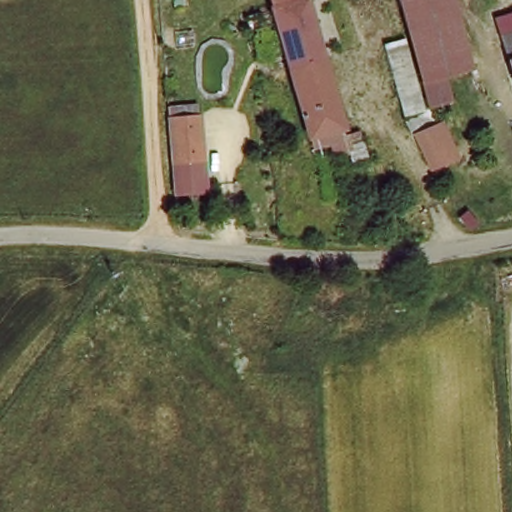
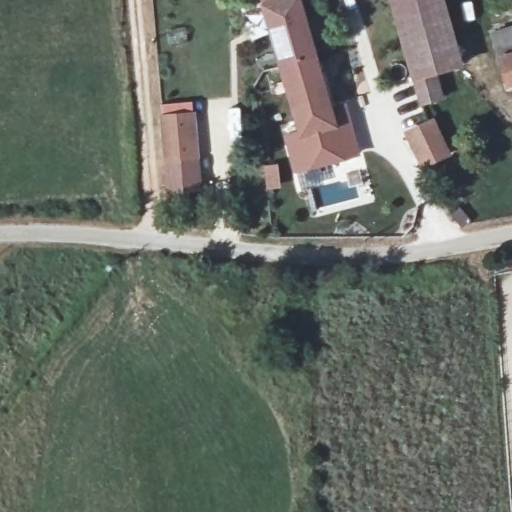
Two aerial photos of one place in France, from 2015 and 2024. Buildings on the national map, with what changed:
new [(261,0),(291,0),(264,9),(261,0)]
unchanged [(282,68),(264,9),(291,0),(298,0),(317,59),(282,68)]
unchanged [(453,71),(435,75),(440,100),(418,106),(394,0),(440,0),(453,71)]
unchanged [(492,37),(512,31),(512,89),(507,91),(492,37)]
unchanged [(337,128),(302,137),(282,68),(317,59),(337,128)]
new [(302,137),(337,128),(330,106),(345,103),(360,156),(292,174),(281,134),(292,131),(293,137),(302,134),(302,137)]
unchanged [(198,118),(203,161),(173,164),(168,122),(198,118)]
unchanged [(405,138),(423,128),(429,125),(447,157),(435,164),(423,170),(405,138)]
unchanged [(455,217),(460,212),(465,208),(475,219),(472,223),(467,228),(455,217)]

